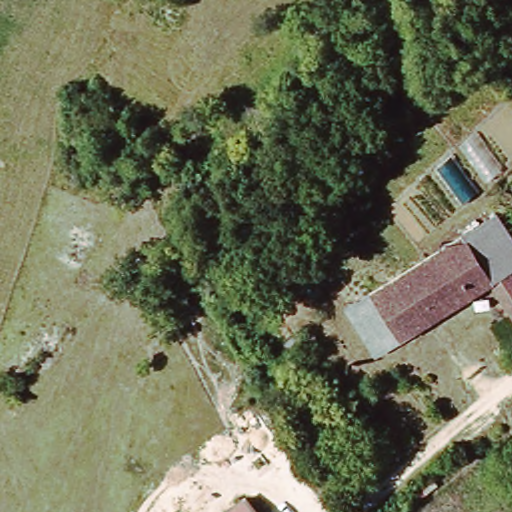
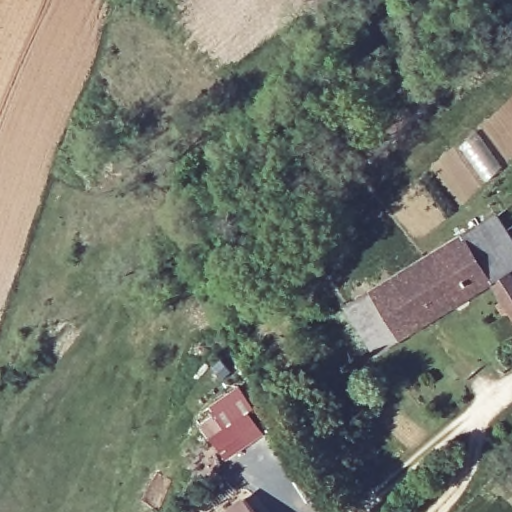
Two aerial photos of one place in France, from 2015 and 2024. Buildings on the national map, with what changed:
unchanged [(462,240),(494,220),(512,249),(512,274),(509,276),(492,286),(462,240)]
unchanged [(367,296),(462,240),(492,286),(399,345),(367,296)]
unchanged [(512,279),(512,315),(492,286),(509,276),(512,279)]
unchanged [(367,296),(399,345),(376,360),(344,311),(367,296)]
unchanged [(498,338),(512,326),(512,356),(498,338)]
new [(239,385),(254,408),(249,412),(264,435),(224,461),(192,418),(239,385)]
unchanged [(257,512),(270,501),(279,512),(257,512)]

